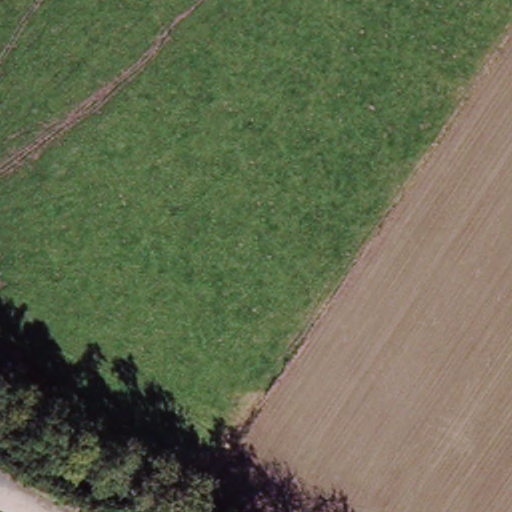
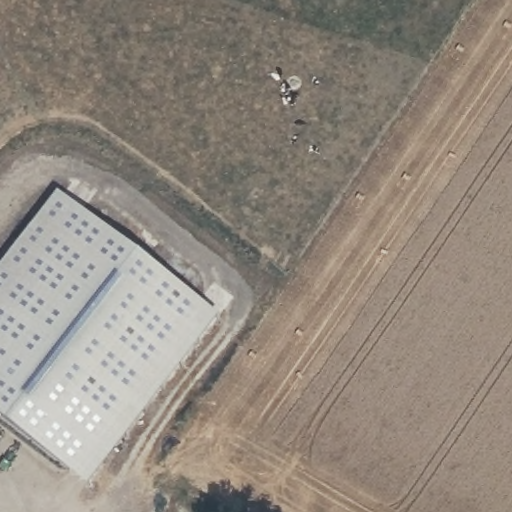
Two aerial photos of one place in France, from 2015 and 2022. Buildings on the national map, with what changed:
new [(60,198),(212,324),(90,471),(0,411),(0,269),(60,198)]

